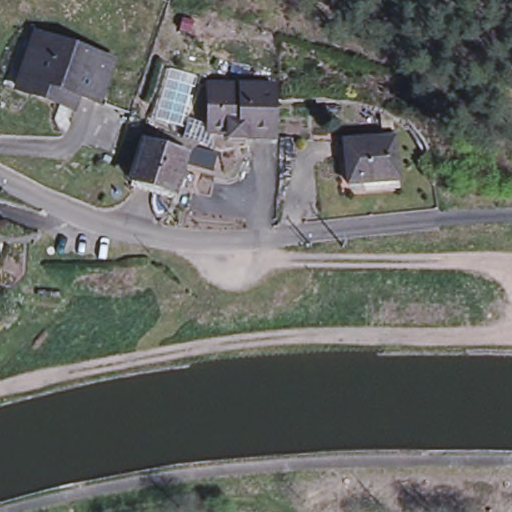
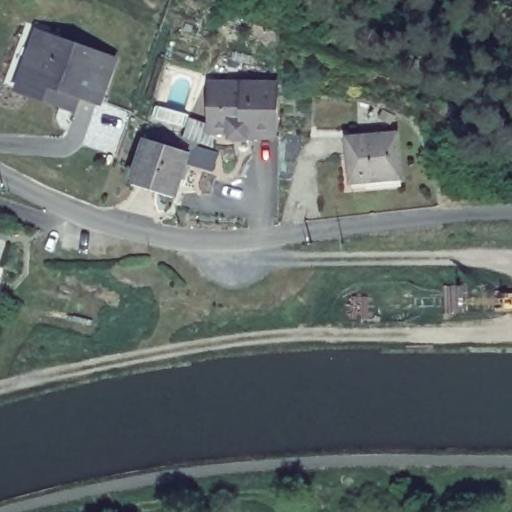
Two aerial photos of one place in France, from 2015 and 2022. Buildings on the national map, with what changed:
unchanged [(120,59),(105,98),(84,91),(79,105),(25,85),(45,32),(120,59)]
unchanged [(279,84),(279,133),(249,133),(249,136),(231,136),(231,128),(212,128),(214,84),(279,84)]
unchanged [(397,135),(400,180),(350,185),(346,140),(397,135)]
unchanged [(185,160),(174,198),(131,185),(142,147),(185,160)]
unchanged [(0,274),(0,246),(14,252),(4,275),(0,274)]

